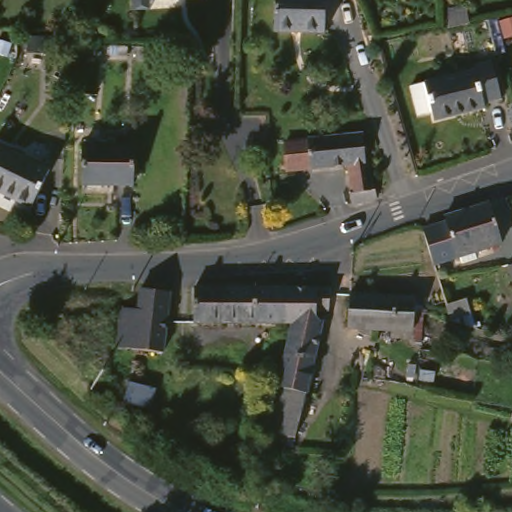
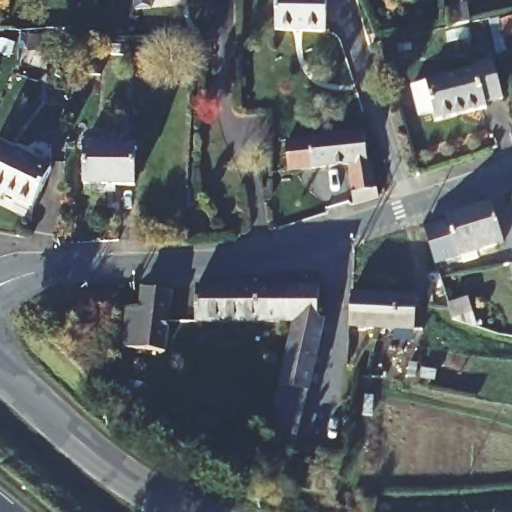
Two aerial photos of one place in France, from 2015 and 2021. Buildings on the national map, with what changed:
unchanged [(284,0),(335,0),(334,28),(283,26),(284,0)]
unchanged [(70,43),(86,44),(85,74),(68,73),(70,43)]
unchanged [(104,44),(127,45),(127,56),(104,55),(104,44)]
unchanged [(428,85),(443,81),(496,68),(495,64),(512,60),(512,101),(505,103),(506,109),(453,121),(451,111),(436,115),(428,85)]
unchanged [(383,123),(386,153),(392,152),(394,186),(373,193),(372,182),(374,182),(372,154),(360,155),(357,126),(383,123)]
unchanged [(306,130),(357,126),(360,155),(356,156),(307,159),(306,130)]
unchanged [(70,163),(50,202),(0,177),(0,169),(17,136),(70,163)]
unchanged [(94,139),(144,140),(143,181),(92,179),(94,139)]
unchanged [(453,225),(460,221),(457,216),(455,209),(498,196),(511,238),(484,245),(487,254),(473,258),(471,250),(467,251),(444,257),(443,258),(441,248),(442,247),(453,225)]
unchanged [(508,265),(512,264),(512,280),(508,265)]
unchanged [(430,295),(430,297),(427,323),(368,321),(368,295),(368,275),(371,275),(386,276),(388,291),(430,295)]
unchanged [(300,280),(299,317),(205,310),(210,276),(300,280)]
unchanged [(300,280),(343,282),(343,289),(341,308),(338,321),(310,318),(299,317),(300,280)]
unchanged [(189,286),(176,349),(126,339),(132,298),(155,303),(159,284),(189,286)]
unchanged [(310,318),(338,321),(311,429),(282,423),(310,318)]

